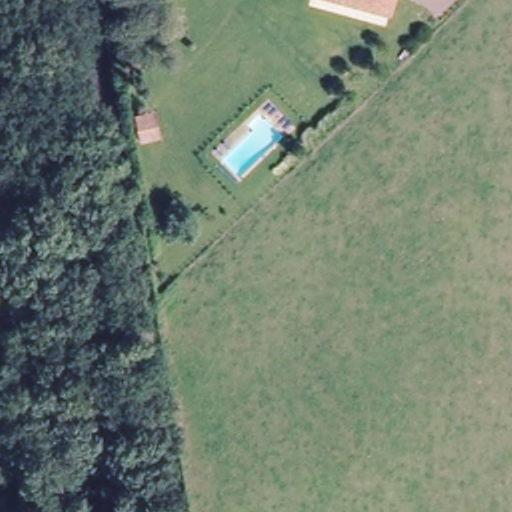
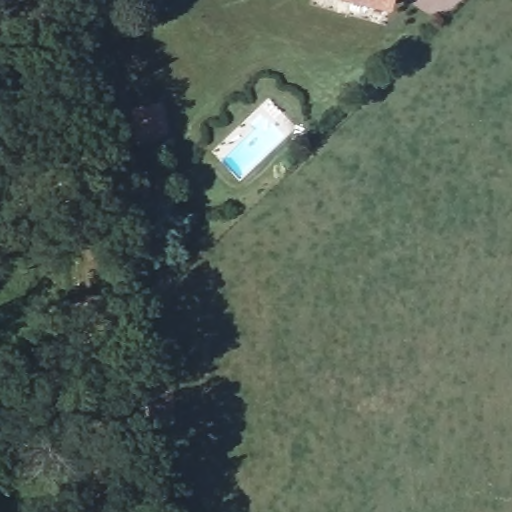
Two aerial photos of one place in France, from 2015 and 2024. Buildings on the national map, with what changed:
unchanged [(389,14),(337,0),(393,0),(389,14)]

